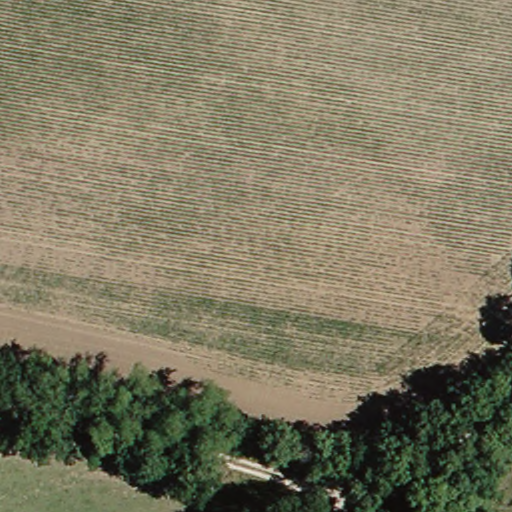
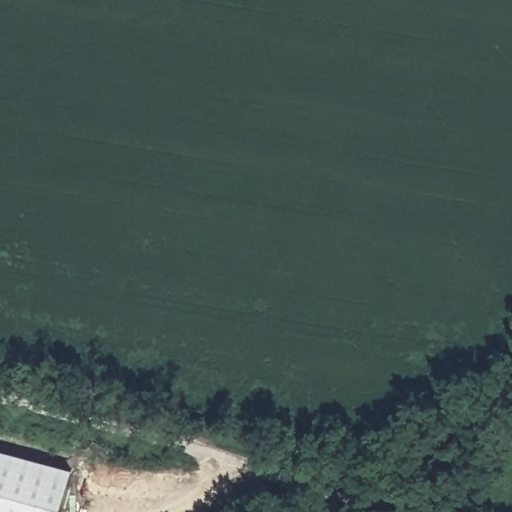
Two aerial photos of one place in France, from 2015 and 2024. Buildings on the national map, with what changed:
new [(65,512),(0,512),(0,451),(75,469),(65,512)]

